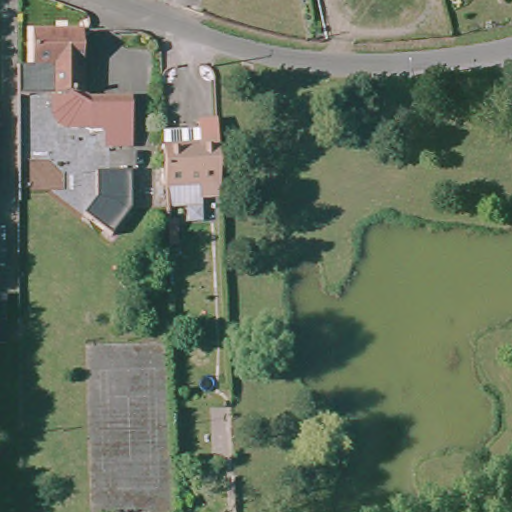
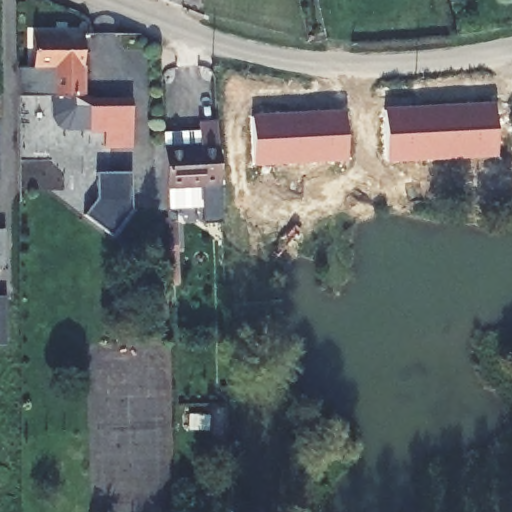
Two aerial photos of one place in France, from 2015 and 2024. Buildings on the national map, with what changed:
unchanged [(134,147),(104,148),(103,126),(73,126),(68,126),(60,124),(54,117),(53,113),(52,69),(31,69),(30,31),(82,31),(82,93),(94,99),(132,100),(134,147)]
new [(385,109),(495,103),(497,158),(387,163),(385,109)]
new [(252,117),(345,111),(347,161),(255,166),(252,117)]
unchanged [(167,204),(167,202),(166,182),(165,141),(202,142),(202,119),(222,119),(225,197),(203,197),(204,204),(167,204)]
new [(92,200),(92,174),(127,174),(127,211),(107,238),(80,217),(92,200)]
unchanged [(170,221),(171,247),(162,247),(162,221),(170,221)]
unchanged [(0,345),(0,296),(2,345),(0,345)]

